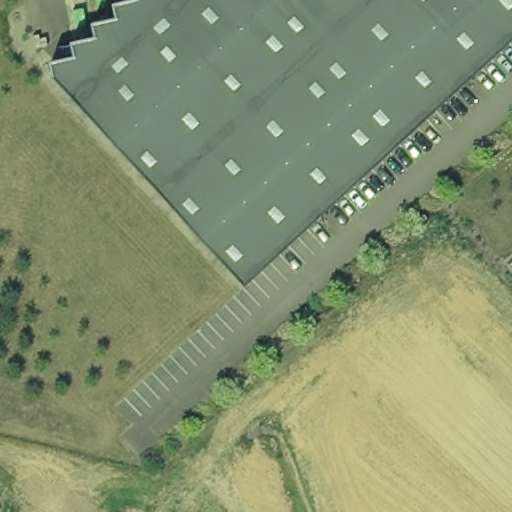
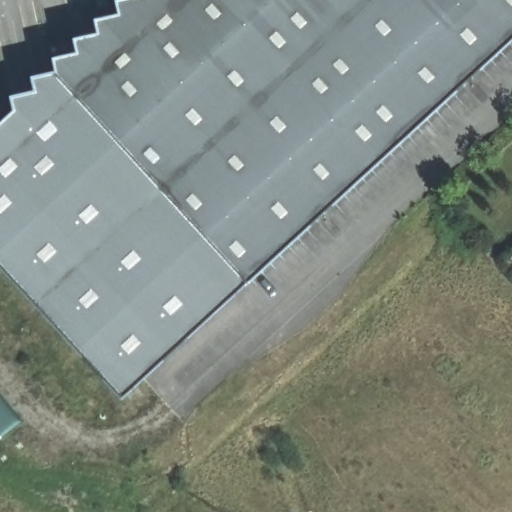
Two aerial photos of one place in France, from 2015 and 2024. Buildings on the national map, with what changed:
unchanged [(54,70),(53,55),(77,50),(73,36),(98,31),(94,16),(119,11),(116,0),(512,0),(512,37),(247,280),(54,70)]
new [(118,398),(0,270),(0,125),(13,114),(12,94),(35,92),(32,74),(55,70),(247,280),(118,398)]

